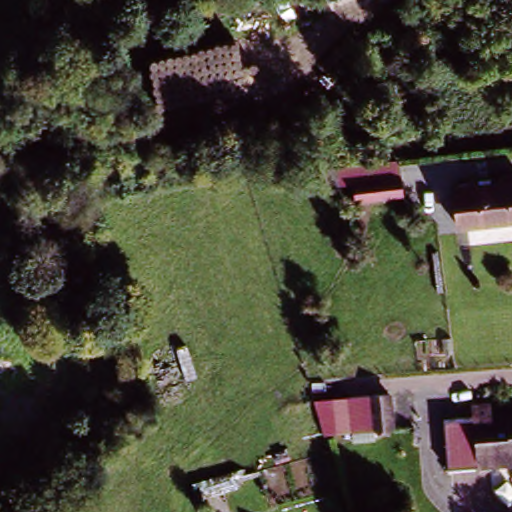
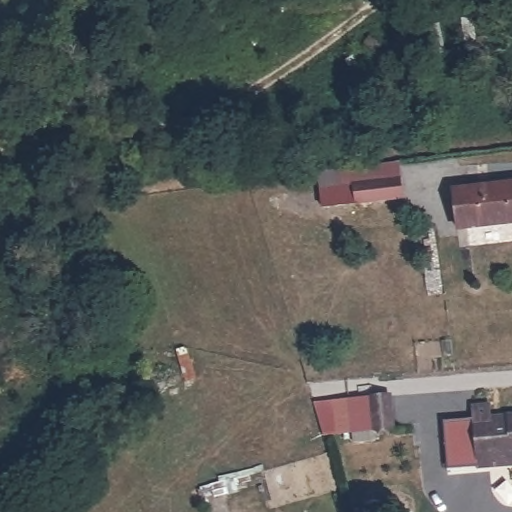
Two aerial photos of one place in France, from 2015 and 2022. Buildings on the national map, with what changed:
unchanged [(388,169),(390,188),(345,192),(344,173),(388,169)]
unchanged [(512,188),(512,225),(453,231),(450,194),(512,188)]
unchanged [(314,401),(391,393),(395,434),(380,435),(375,431),(325,435),(314,401)]
unchanged [(473,471),(469,406),(486,405),(487,416),(512,415),(512,469),(507,468),(473,471)]
unchanged [(473,466),(448,468),(445,420),(470,417),(473,466)]

